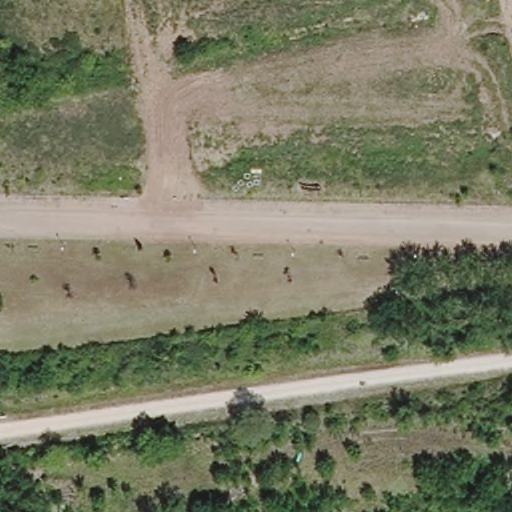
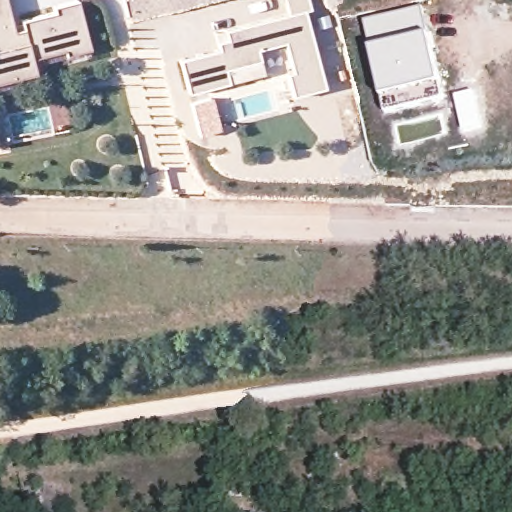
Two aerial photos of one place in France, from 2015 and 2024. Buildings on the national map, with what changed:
new [(5,0),(13,32),(24,29),(22,21),(58,13),(56,7),(78,1),(90,50),(66,56),(65,51),(31,58),(35,73),(0,81),(0,0),(5,0)]
new [(185,89),(178,56),(219,47),(217,40),(215,31),(225,29),(280,16),(276,0),(310,0),(312,11),(307,12),(324,89),(291,96),(286,73),(292,71),(285,42),(257,48),(259,59),(263,73),(227,80),(185,89)]
new [(386,114),(382,101),(363,20),(422,6),(432,41),(442,86),(444,98),(386,114)]

